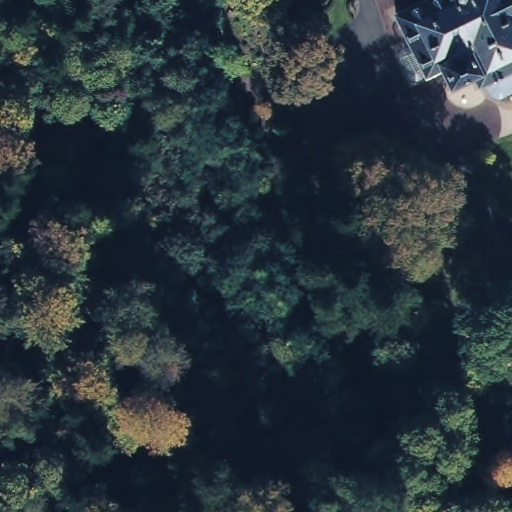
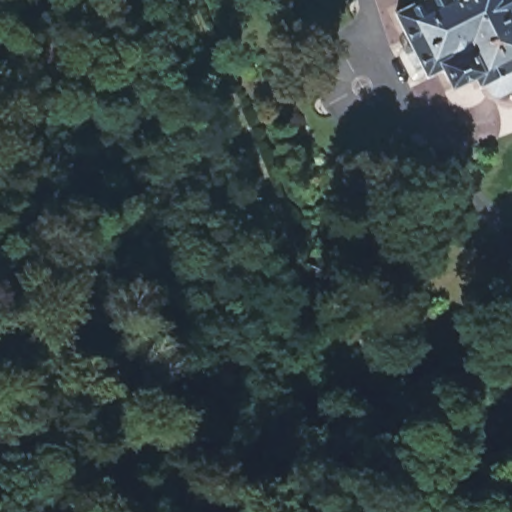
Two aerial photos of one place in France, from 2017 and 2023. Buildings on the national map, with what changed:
unchanged [(405,25),(392,0),(511,0),(512,1),(512,60),(489,70),(482,68),(476,58),(472,58),(464,49),(442,60),(432,41),(417,48),(406,53),(395,30),(405,25)]

